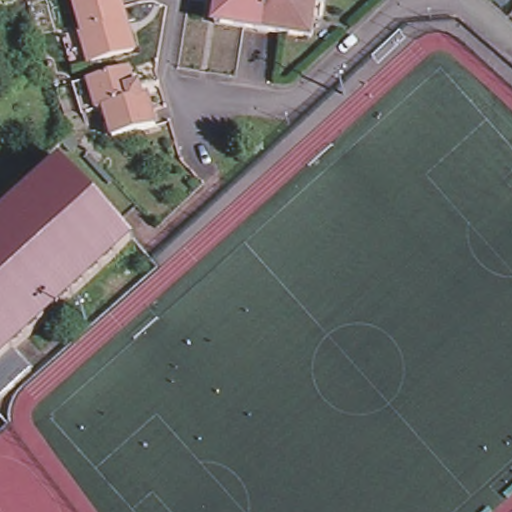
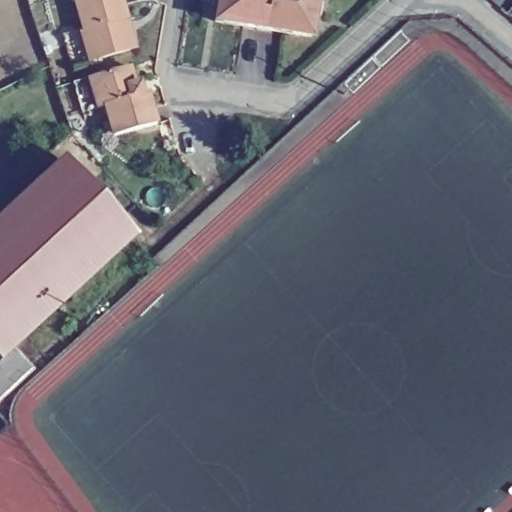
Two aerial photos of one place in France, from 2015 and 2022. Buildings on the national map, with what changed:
unchanged [(82,22),(75,0),(120,0),(132,42),(110,47),(87,54),(70,59),(65,40),(61,29),(79,23),(82,22)]
unchanged [(260,27),(212,20),(215,0),(265,0),(260,27)]
unchanged [(260,27),(265,0),(313,0),(307,35),(262,27),(260,27)]
unchanged [(145,91),(154,124),(110,135),(102,105),(95,107),(80,111),(72,80),(86,75),(127,64),(135,94),(145,91)]
unchanged [(57,155),(130,233),(12,345),(29,364),(0,392),(0,208),(57,155)]

